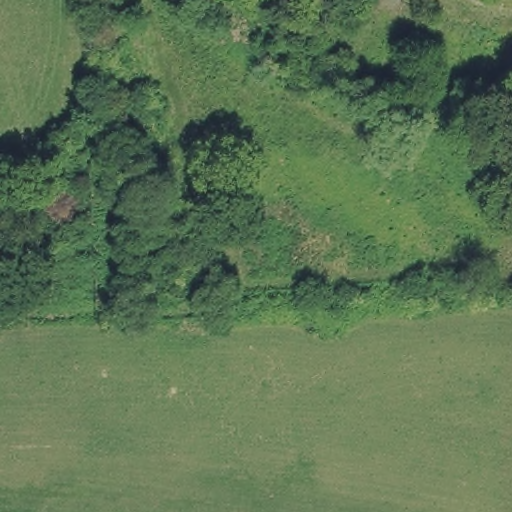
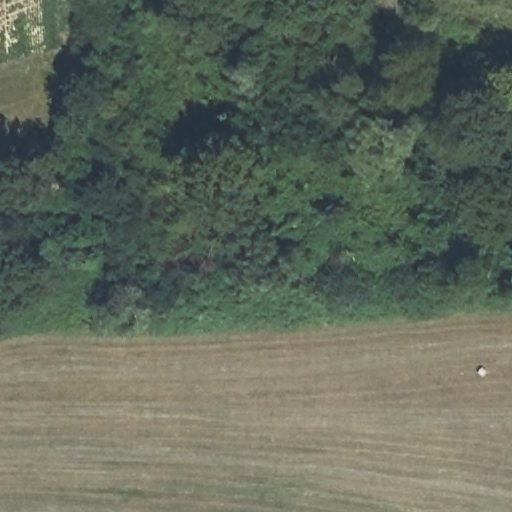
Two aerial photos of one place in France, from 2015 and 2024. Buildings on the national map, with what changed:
unchanged [(391,11),(413,5),(419,24),(396,32),(391,11)]

